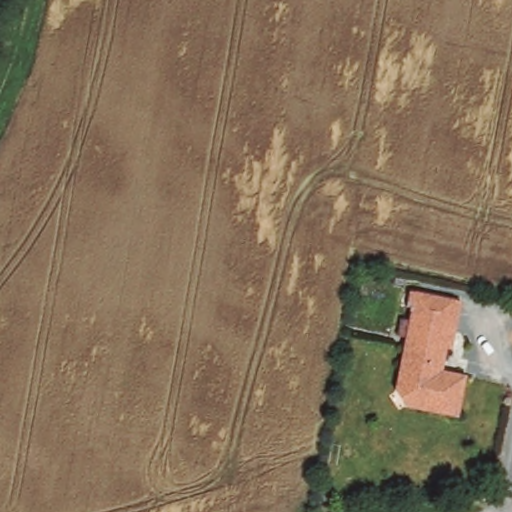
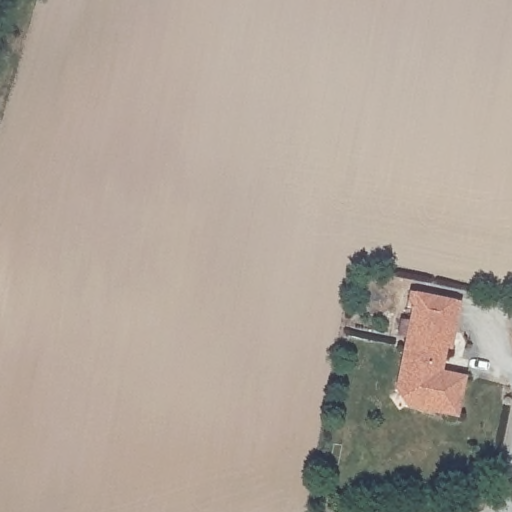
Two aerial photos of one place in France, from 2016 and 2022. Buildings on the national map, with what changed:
unchanged [(467,375),(458,417),(422,409),(426,387),(397,382),(412,306),(433,310),(458,315),(456,330),(452,349),(447,348),(445,362),(442,371),(467,375)]

